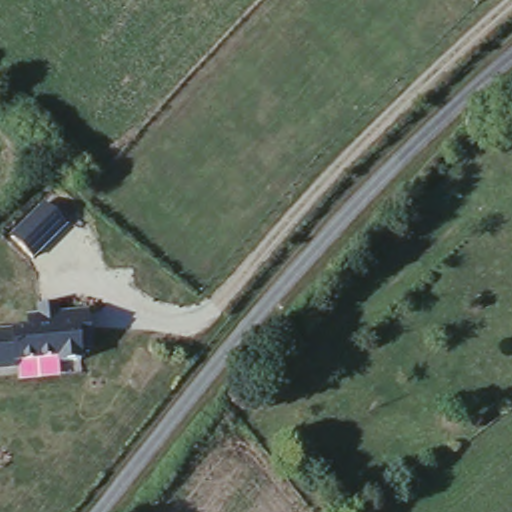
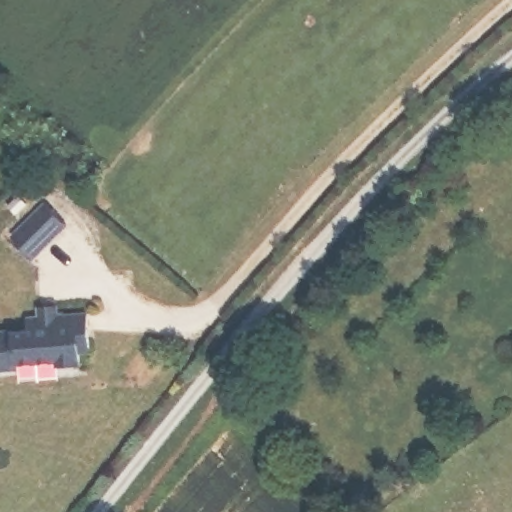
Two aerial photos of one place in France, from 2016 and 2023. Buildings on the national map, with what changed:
unchanged [(34,260),(10,236),(44,202),(69,226),(34,260)]
unchanged [(82,352),(83,358),(77,359),(78,363),(55,365),(55,361),(18,364),(18,369),(0,370),(0,332),(28,329),(28,318),(39,318),(39,305),(59,304),(59,315),(91,312),(91,351),(82,352)]

